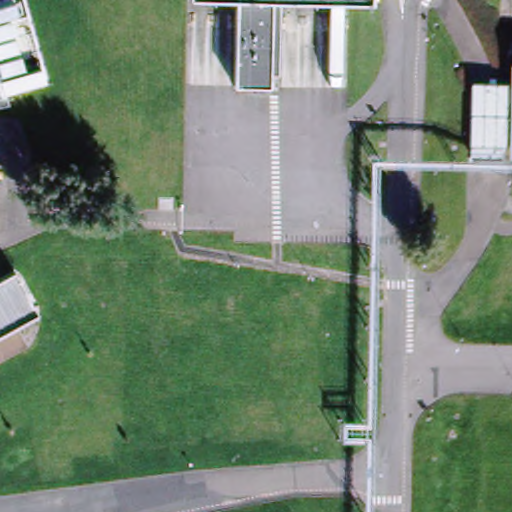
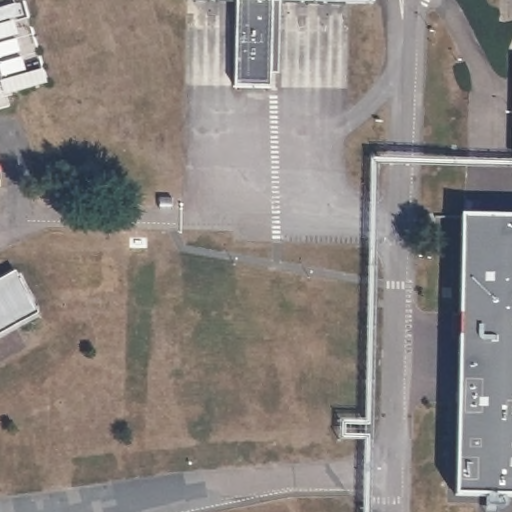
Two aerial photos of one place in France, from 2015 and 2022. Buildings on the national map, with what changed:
unchanged [(366,22),(364,34),(265,27),(259,113),(223,111),(228,24),(181,21),(183,0),(396,0),(394,24),(366,22)]
unchanged [(21,15),(11,18),(27,74),(43,69),(46,83),(0,97),(0,8),(18,2),(21,15)]
unchanged [(504,164),(509,67),(511,67),(512,73),(512,164),(504,164)]
unchanged [(511,67),(512,67),(512,73),(511,67)]
new [(512,217),(512,496),(456,495),(460,216),(512,217)]
unchanged [(38,315),(0,335),(0,280),(14,272),(38,315)]

